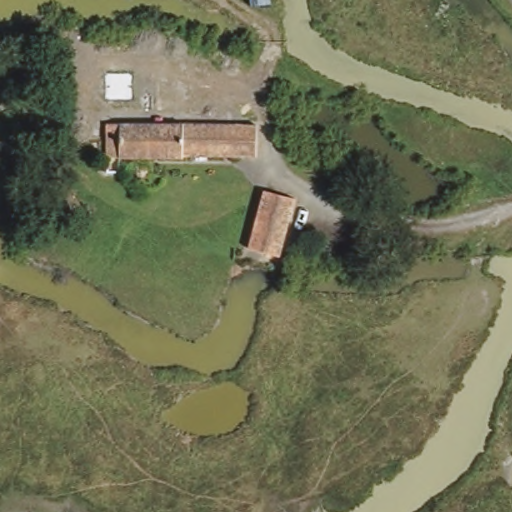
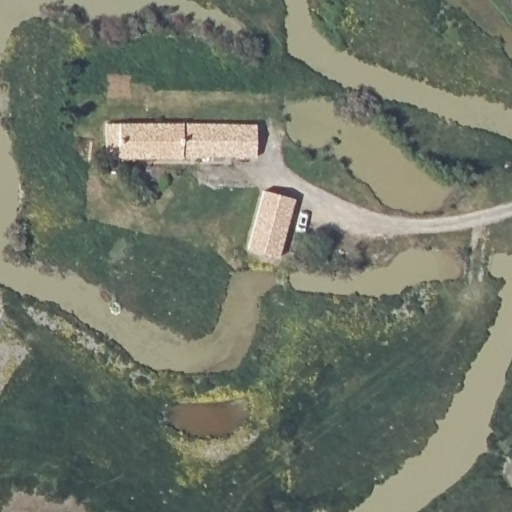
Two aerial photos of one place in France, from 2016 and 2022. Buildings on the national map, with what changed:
unchanged [(226,126),(257,126),(256,162),(187,161),(187,169),(112,169),(112,125),(226,126)]
unchanged [(297,199),(285,255),(254,249),(266,193),(297,199)]

